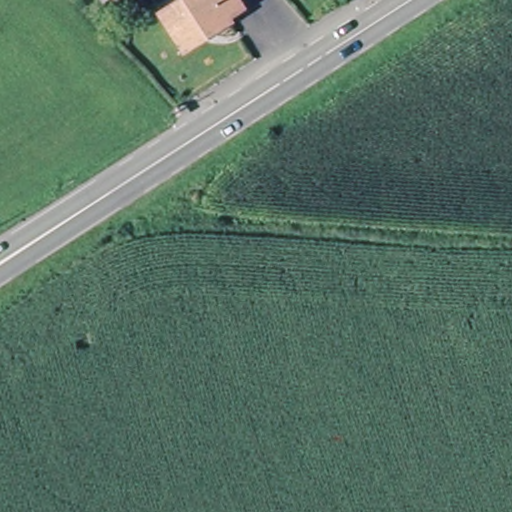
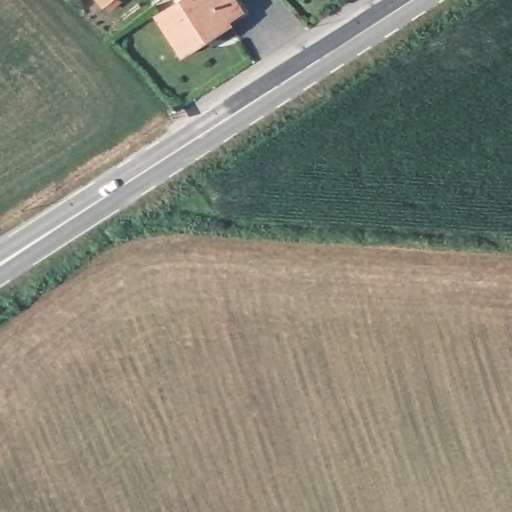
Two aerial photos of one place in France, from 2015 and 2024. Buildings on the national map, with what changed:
unchanged [(230,0),(238,12),(224,20),(229,29),(183,57),(161,21),(195,0),(230,0)]

